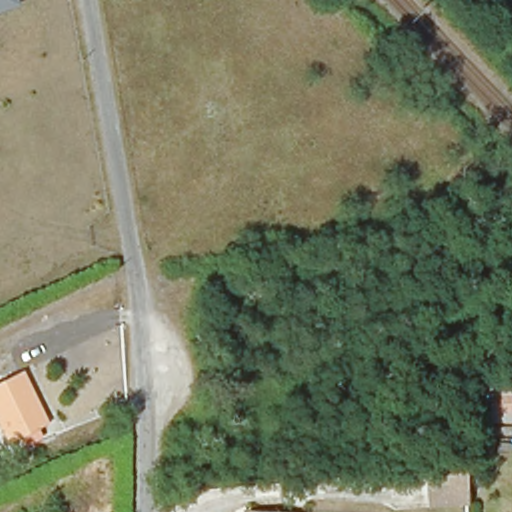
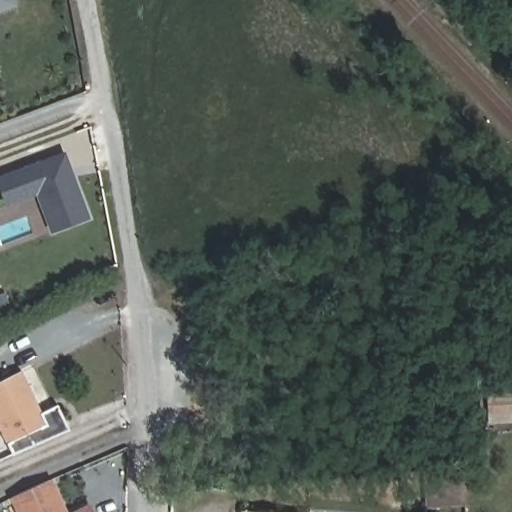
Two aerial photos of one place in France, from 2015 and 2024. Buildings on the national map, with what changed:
unchanged [(17,0),(20,9),(0,16),(0,0),(17,0)]
new [(94,218),(58,232),(43,194),(22,202),(13,205),(3,180),(12,176),(70,154),(94,218)]
unchanged [(70,429),(15,453),(12,447),(0,425),(0,386),(22,374),(52,425),(44,412),(58,405),(70,429)]
unchanged [(487,384),(504,382),(505,395),(512,395),(512,411),(487,414),(487,384)]
unchanged [(464,499),(464,505),(423,506),(422,466),(425,465),(464,462),(464,499)]
new [(10,498),(53,479),(68,512),(17,512),(10,498)]
new [(91,503),(95,512),(70,512),(91,503)]

